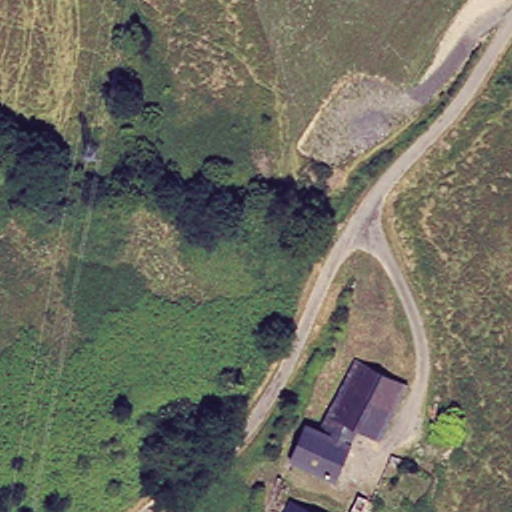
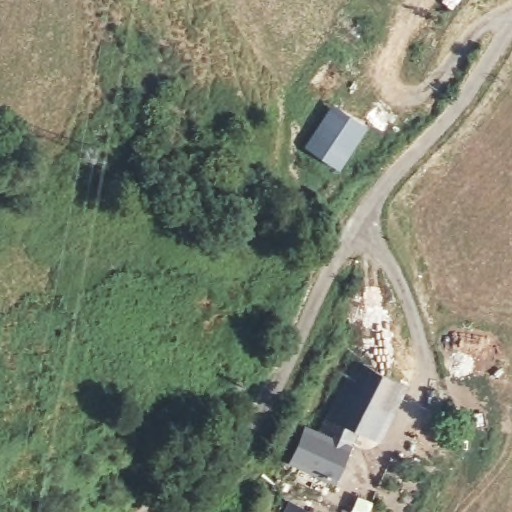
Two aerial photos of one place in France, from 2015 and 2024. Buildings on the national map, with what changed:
new [(367,126),(334,178),(298,155),(332,104),(367,126)]
unchanged [(320,429),(351,357),(407,382),(381,442),(361,433),(337,484),(292,466),(308,424),(320,429)]
unchanged [(368,512),(355,505),(362,488),(376,493),(368,512)]
unchanged [(310,512),(295,512),(298,506),(310,512)]
unchanged [(274,512),(274,511),(275,512),(274,512)]

